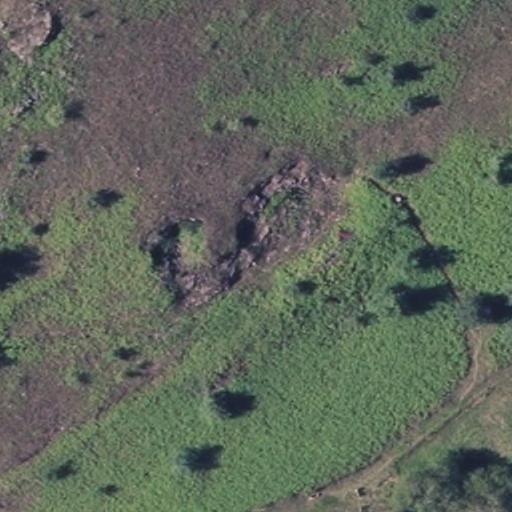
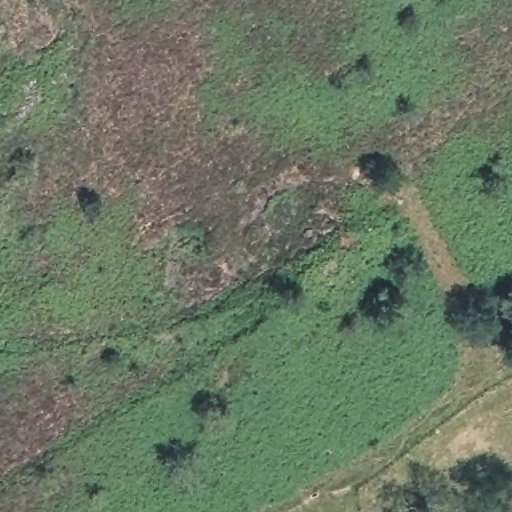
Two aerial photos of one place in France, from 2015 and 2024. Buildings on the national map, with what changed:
[]

